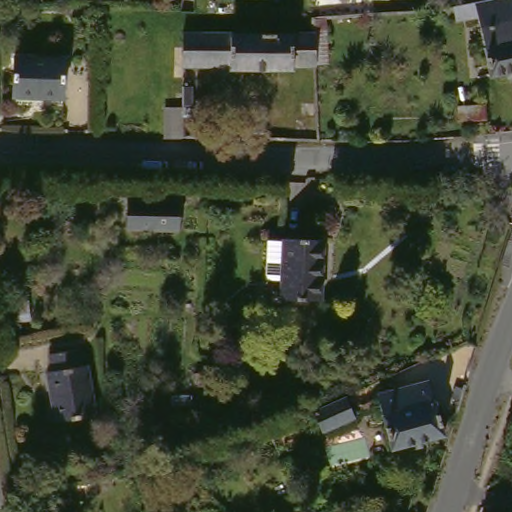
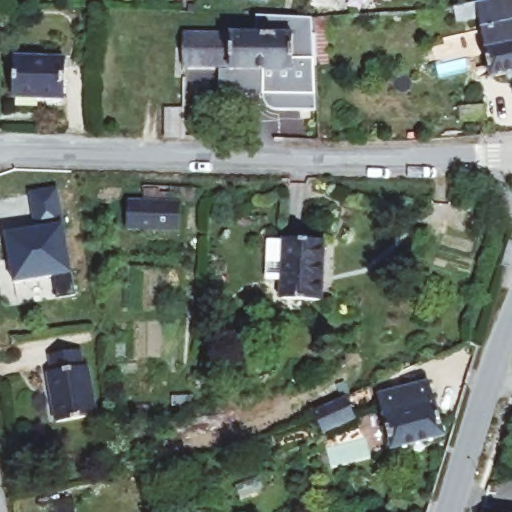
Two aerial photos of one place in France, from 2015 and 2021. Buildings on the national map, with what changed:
unchanged [(482,0),(512,0),(512,81),(497,85),(481,29),(477,1),(482,0)]
unchanged [(301,67),(238,66),(238,64),(191,64),(190,30),(323,30),(322,16),(334,16),(336,60),(325,61),(325,63),(322,63),(301,63),(301,67)]
unchanged [(66,57),(65,98),(15,96),(16,56),(66,57)]
unchanged [(188,95),(188,114),(178,114),(178,95),(188,95)]
unchanged [(480,127),(453,130),(452,115),(478,113),(480,127)]
unchanged [(178,117),(178,147),(161,147),(161,145),(161,117),(178,117)]
new [(56,185),(77,292),(58,296),(53,274),(14,281),(3,231),(36,225),(29,190),(56,185)]
unchanged [(180,201),(178,229),(127,227),(128,199),(180,201)]
unchanged [(326,288),(285,287),(286,268),(274,268),(271,267),(273,228),(288,228),(288,226),(328,228),(326,288)]
unchanged [(100,418),(61,425),(52,376),(57,375),(54,358),(83,353),(86,369),(91,368),(100,418)]
unchanged [(434,405),(435,404),(444,437),(391,451),(377,396),(429,383),(434,405)]
unchanged [(349,425),(317,440),(307,418),(339,403),(349,425)]

